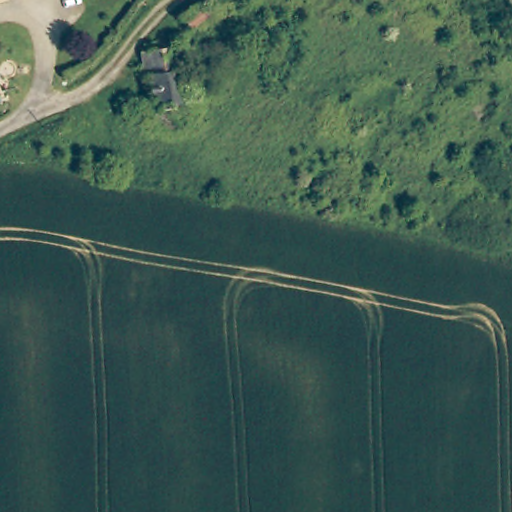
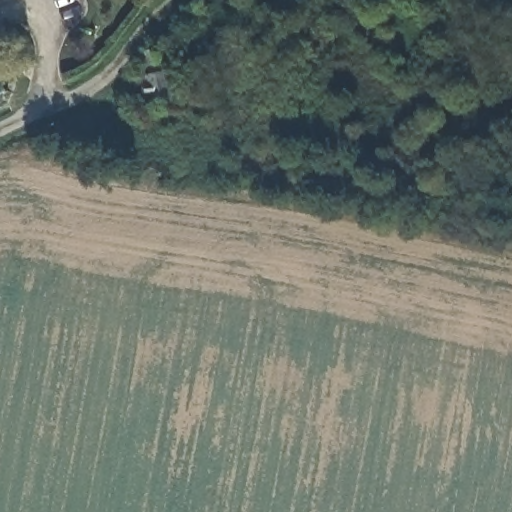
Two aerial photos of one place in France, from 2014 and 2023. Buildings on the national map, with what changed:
unchanged [(182,10),(185,14),(209,0),(217,13),(189,31),(178,14),(182,10)]
unchanged [(171,47),(181,106),(148,112),(140,54),(171,47)]
unchanged [(0,92),(0,91),(1,91),(0,92)]

